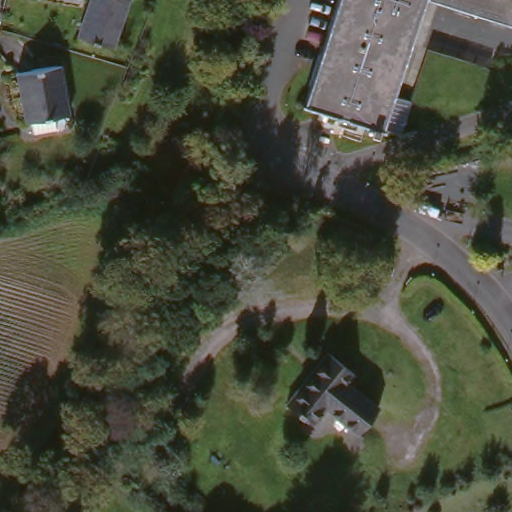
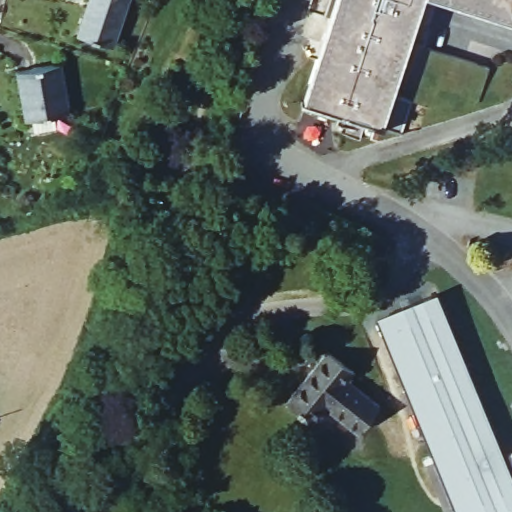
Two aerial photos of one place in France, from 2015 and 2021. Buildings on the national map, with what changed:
unchanged [(79,34),(89,0),(130,0),(114,47),(79,34)]
unchanged [(430,102),(414,97),(402,134),(378,125),(376,130),(365,127),(367,121),(304,102),(337,0),(423,0),(395,85),(415,91),(433,39),(493,59),(482,93),(438,78),(430,102)]
unchanged [(483,0),(512,0),(512,10),(483,0)]
unchanged [(61,60),(69,107),(52,110),(54,123),(32,127),(30,114),(24,116),(16,67),(61,60)]
new [(376,318),(437,295),(512,479),(512,508),(502,512),(454,512),(376,318)]
unchanged [(326,407),(313,422),(288,402),(329,352),(356,373),(348,382),(379,407),(359,433),(326,407)]

